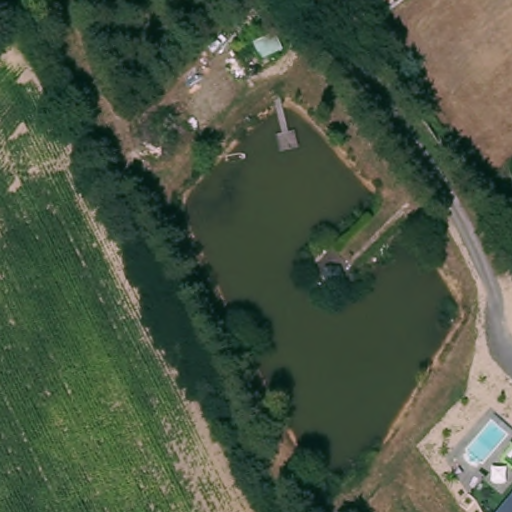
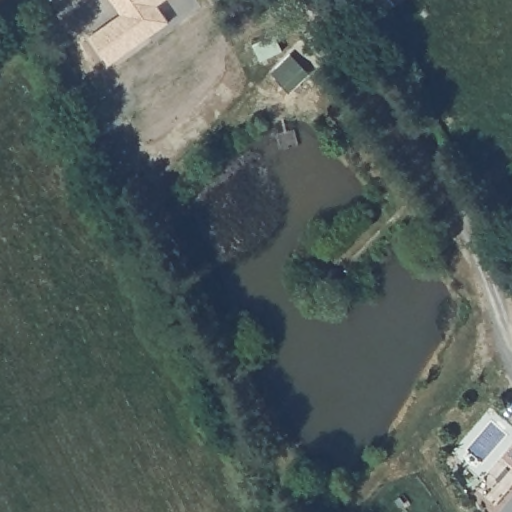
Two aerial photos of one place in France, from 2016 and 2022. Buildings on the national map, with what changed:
new [(110,0),(170,0),(156,10),(168,26),(109,67),(86,35),(119,12),(110,0)]
unchanged [(360,0),(391,0),(395,5),(373,19),(360,0)]
unchanged [(512,497),(512,512),(498,512),(512,497)]

